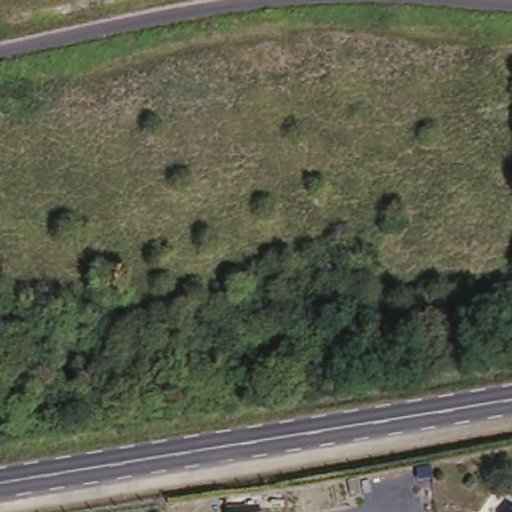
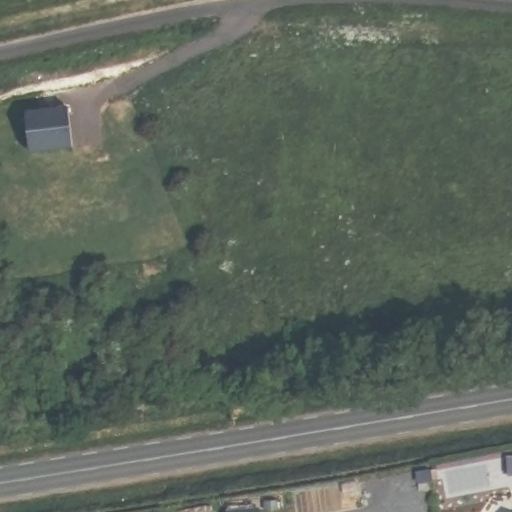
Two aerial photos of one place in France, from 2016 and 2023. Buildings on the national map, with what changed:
new [(70,107),(74,150),(30,154),(26,111),(70,107)]
new [(258,509),(259,512),(240,512),(258,509)]

